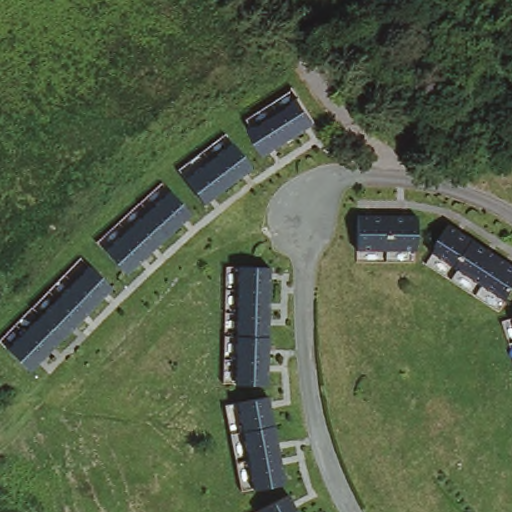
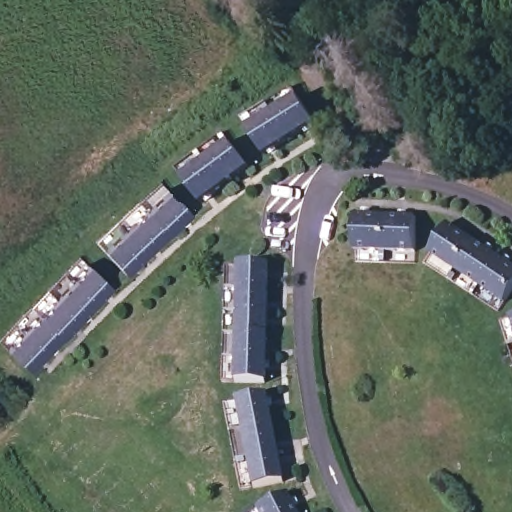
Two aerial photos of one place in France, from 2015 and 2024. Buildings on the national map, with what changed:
unchanged [(291,99),(308,126),(258,157),(241,130),(291,99)]
unchanged [(218,144),(238,170),(195,206),(175,177),(218,144)]
unchanged [(160,191),(183,214),(117,275),(96,251),(160,191)]
unchanged [(351,217),(407,220),(407,254),(350,251),(351,217)]
unchanged [(423,252),(441,225),(512,272),(512,283),(498,302),(423,252)]
unchanged [(77,265),(102,288),(21,372),(0,347),(77,265)]
unchanged [(228,267),(262,267),(258,386),(228,386),(228,267)]
unchanged [(509,320),(512,319),(512,329),(509,320)]
unchanged [(231,403),(262,398),(278,486),(246,491),(231,403)]
unchanged [(287,498),(294,512),(258,512),(287,498)]

